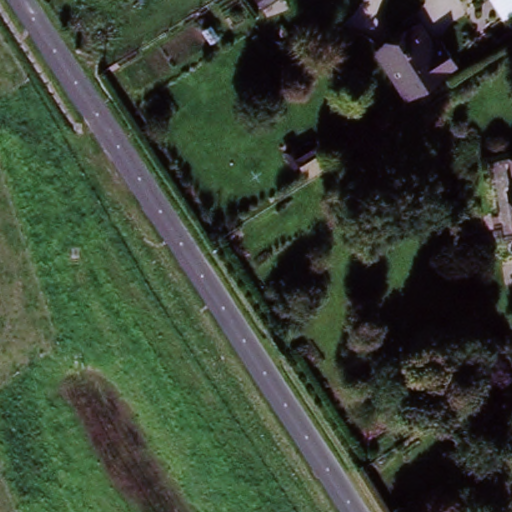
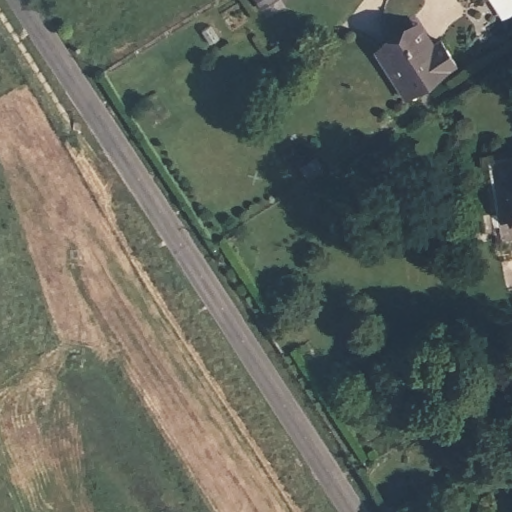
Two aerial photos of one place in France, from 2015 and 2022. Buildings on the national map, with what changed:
unchanged [(414,22),(432,47),(442,42),(457,66),(406,100),(371,49),(414,22)]
unchanged [(511,213),(509,184),(512,183),(512,213),(511,213)]

